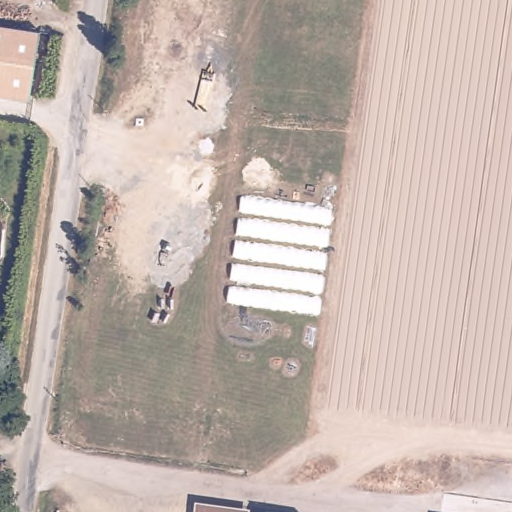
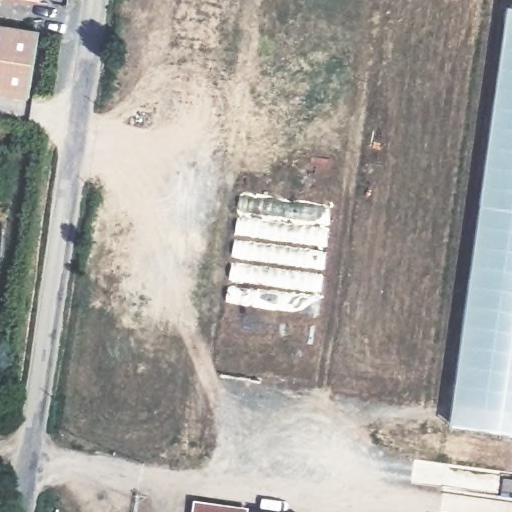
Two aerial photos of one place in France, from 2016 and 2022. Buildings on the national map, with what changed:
new [(41,2),(24,0),(42,0),(41,2)]
new [(510,8),(512,8),(512,434),(450,425),(510,8)]
unchanged [(30,101),(16,99),(0,96),(0,26),(27,31),(40,33),(30,101)]
unchanged [(244,510),(244,512),(195,512),(196,503),(244,510)]

